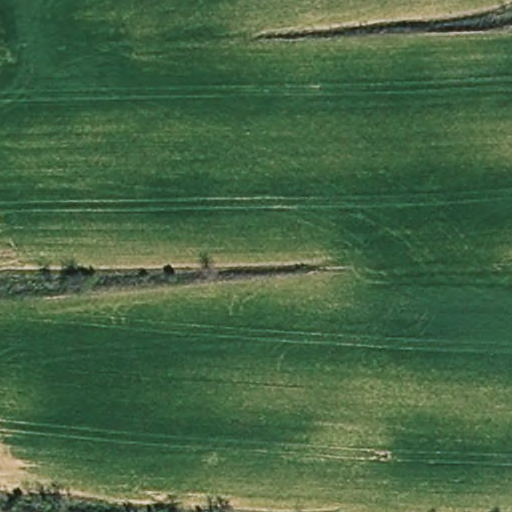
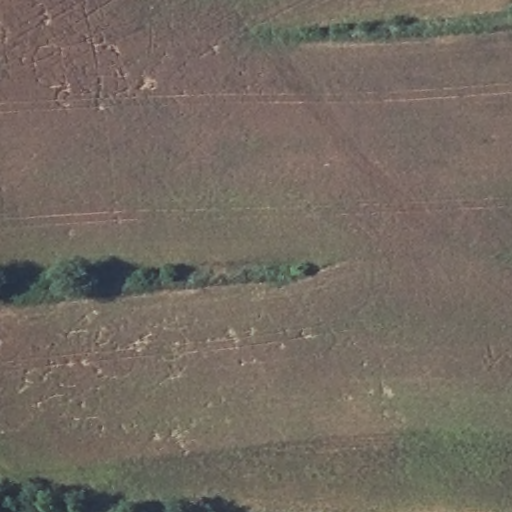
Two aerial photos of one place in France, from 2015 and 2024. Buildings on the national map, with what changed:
[]

